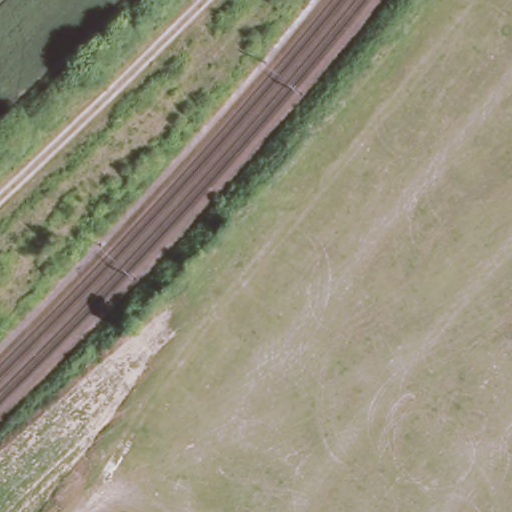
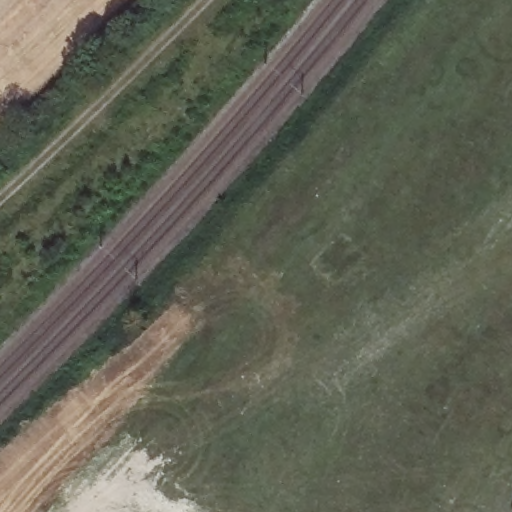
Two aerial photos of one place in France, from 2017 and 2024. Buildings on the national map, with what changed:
[]

